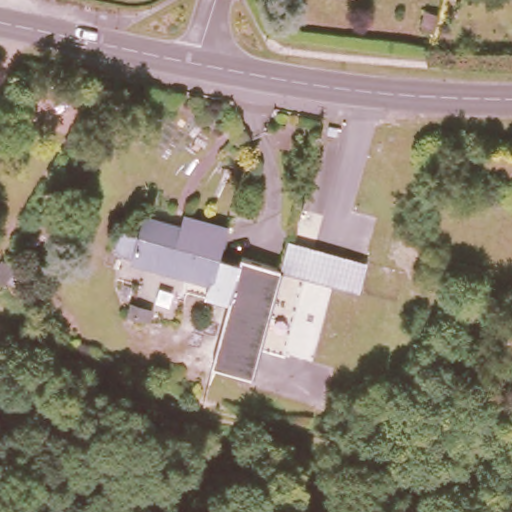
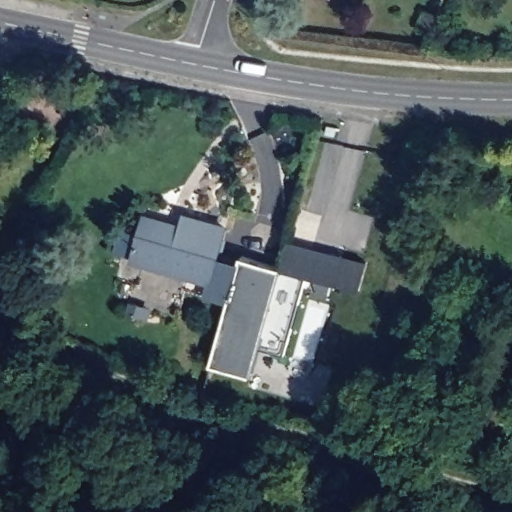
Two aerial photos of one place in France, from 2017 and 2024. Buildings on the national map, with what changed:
unchanged [(334,134),(325,133),(327,124),(335,126),(334,134)]
unchanged [(215,258),(236,264),(238,257),(275,268),(254,349),(247,376),(207,365),(225,301),(182,289),(187,273),(130,258),(140,219),(167,227),(167,231),(175,234),(180,216),(223,227),(215,258)]
unchanged [(367,260),(360,289),(302,274),(280,269),(289,239),(367,260)]
unchanged [(280,269),(302,274),(280,357),(254,349),(275,268),(280,269)]

